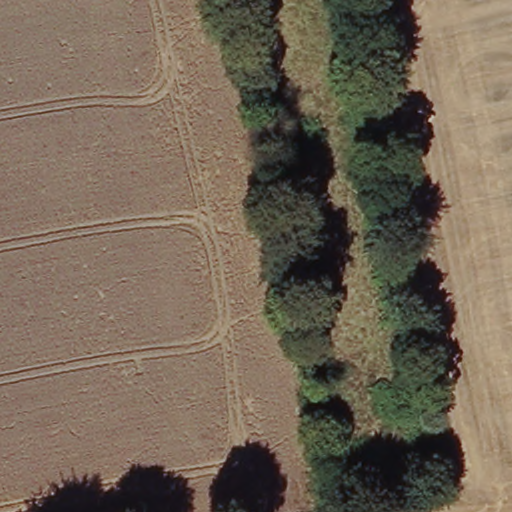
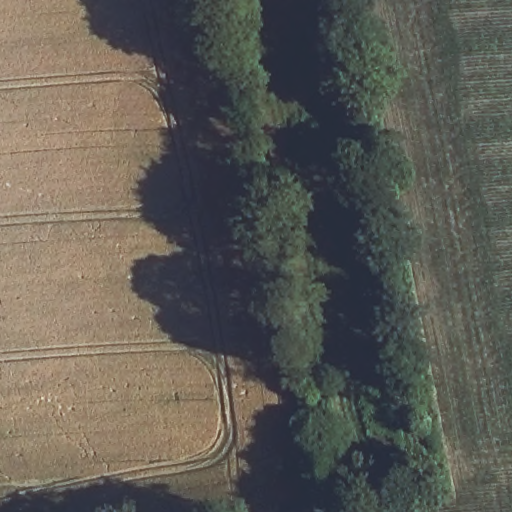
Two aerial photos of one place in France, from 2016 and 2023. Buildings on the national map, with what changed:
[]

